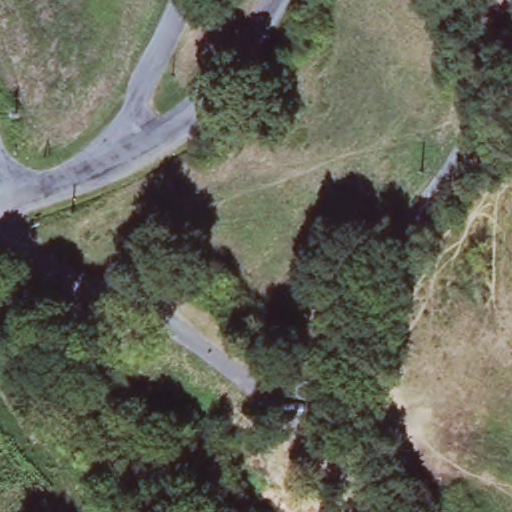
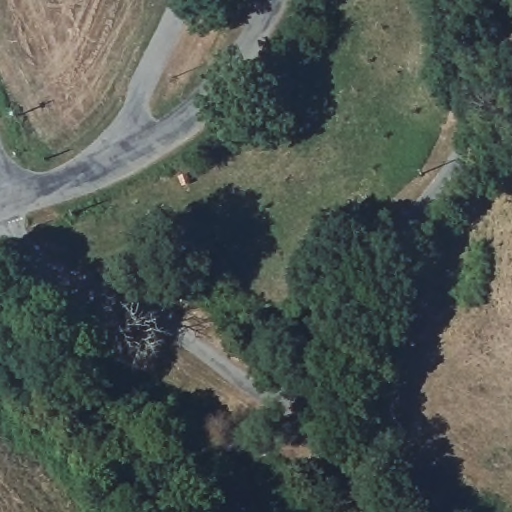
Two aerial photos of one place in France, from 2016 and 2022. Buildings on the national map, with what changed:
[]

